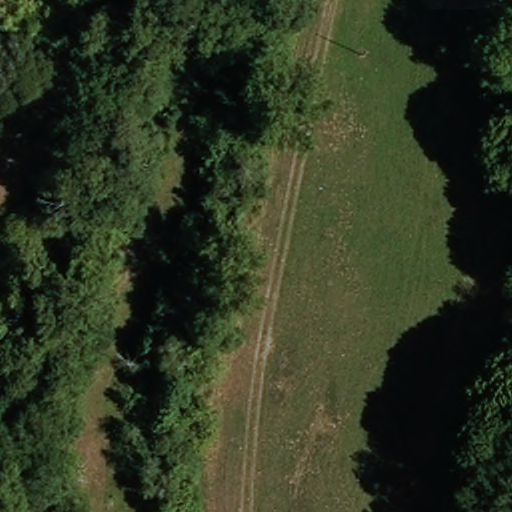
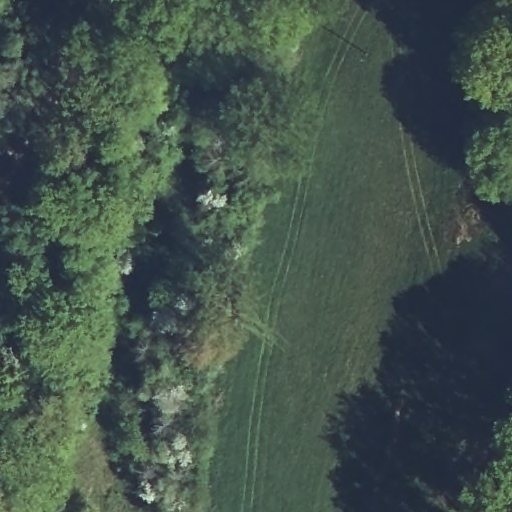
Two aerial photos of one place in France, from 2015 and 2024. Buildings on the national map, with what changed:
[]

